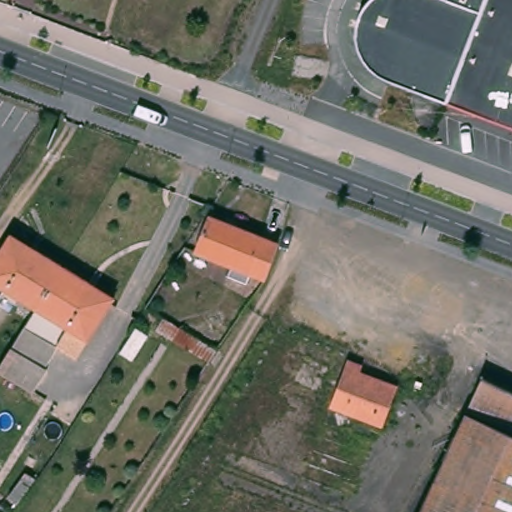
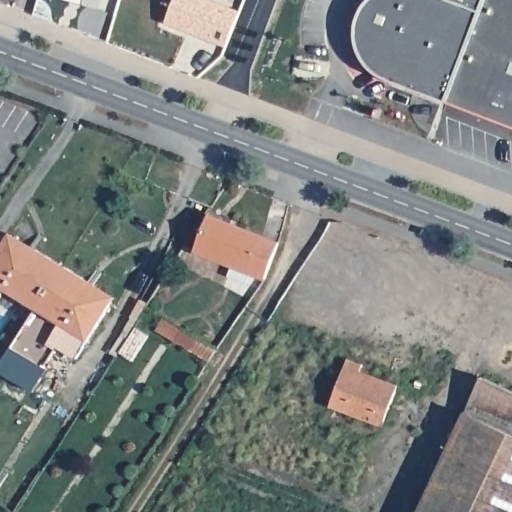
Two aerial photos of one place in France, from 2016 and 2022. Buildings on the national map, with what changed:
new [(173,0),(204,0),(238,14),(224,49),(164,25),(173,0)]
unchanged [(425,94),(388,80),(378,75),(370,67),(363,59),(359,49),(357,37),(357,26),(357,21),(362,10),(365,6),(370,0),(485,0),(447,102),(425,94)]
unchanged [(485,0),(512,0),(512,127),(447,102),(485,0)]
unchanged [(192,252),(206,216),(274,242),(261,278),(192,252)]
unchanged [(5,238),(8,234),(32,249),(60,265),(32,310),(0,290),(0,246),(5,238)]
unchanged [(87,282),(110,296),(107,301),(83,340),(73,356),(53,344),(24,391),(0,376),(0,362),(32,310),(60,265),(87,282)]
unchanged [(215,348),(209,360),(157,330),(164,318),(215,348)]
unchanged [(362,365),(361,371),(397,385),(381,426),(329,406),(347,359),(362,365)]
unchanged [(512,390),(512,512),(420,512),(482,376),(512,390)]

